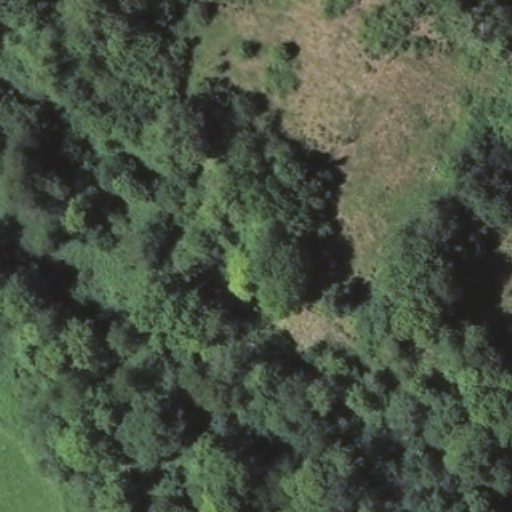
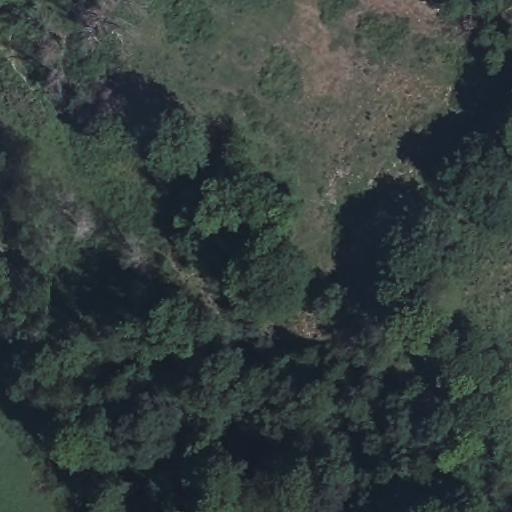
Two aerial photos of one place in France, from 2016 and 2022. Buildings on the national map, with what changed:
[]

